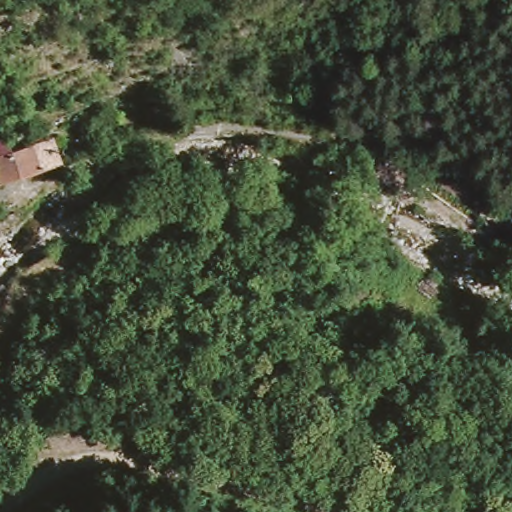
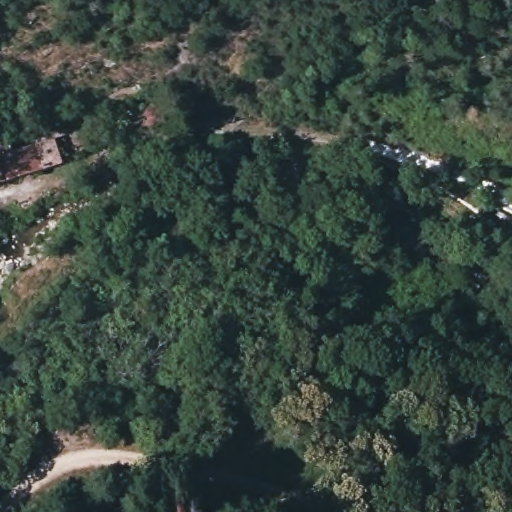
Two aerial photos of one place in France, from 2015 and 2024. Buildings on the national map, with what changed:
unchanged [(33,151),(54,145),(63,171),(41,177),(0,188),(0,154),(30,144),(33,151)]

